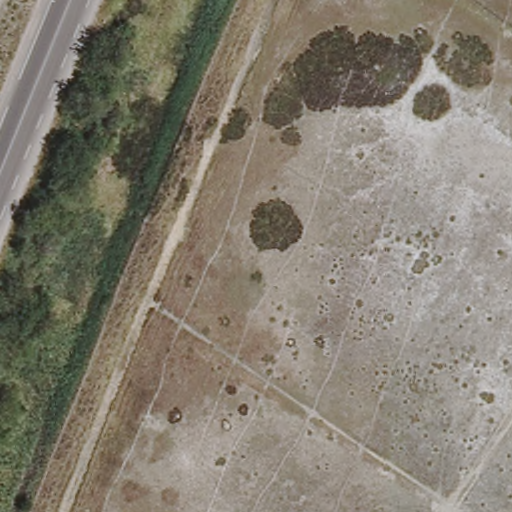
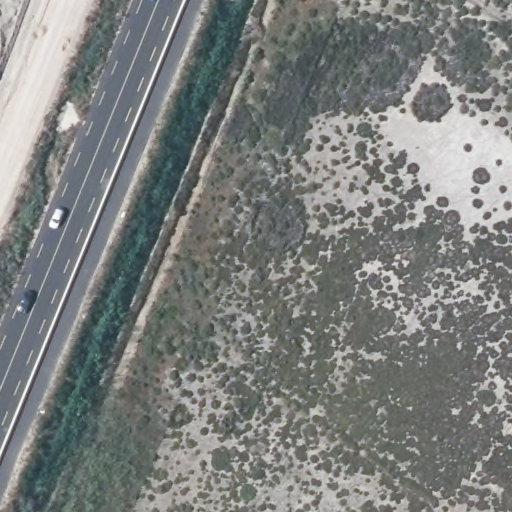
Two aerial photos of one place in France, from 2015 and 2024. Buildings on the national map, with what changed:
[]

